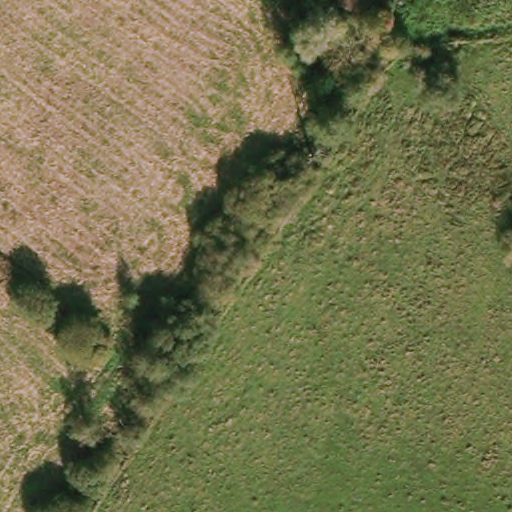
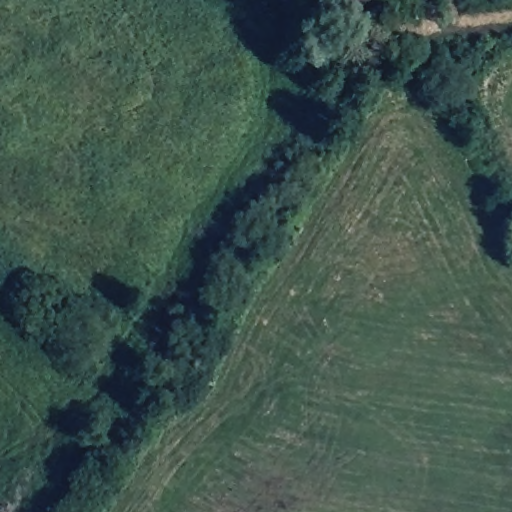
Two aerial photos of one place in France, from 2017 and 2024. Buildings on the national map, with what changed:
unchanged [(329,9),(331,0),(382,0),(390,2),(386,21),(329,9)]

